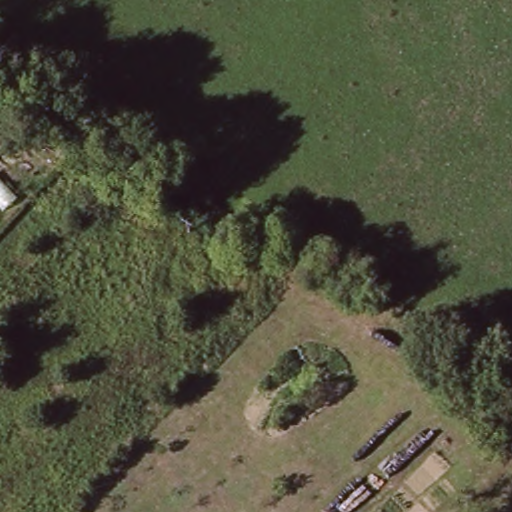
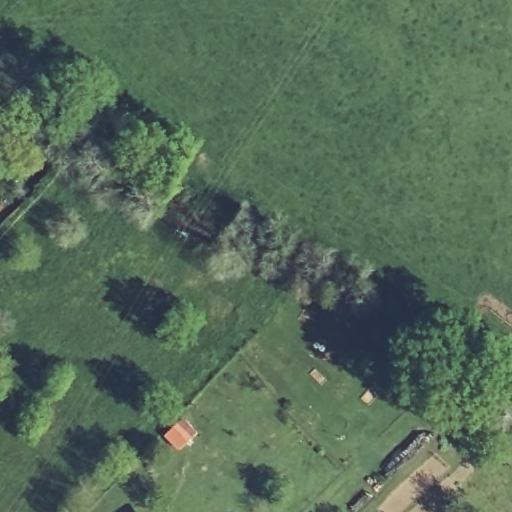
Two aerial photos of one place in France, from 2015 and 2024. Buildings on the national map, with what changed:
unchanged [(0,151),(0,132),(10,144),(0,151)]

